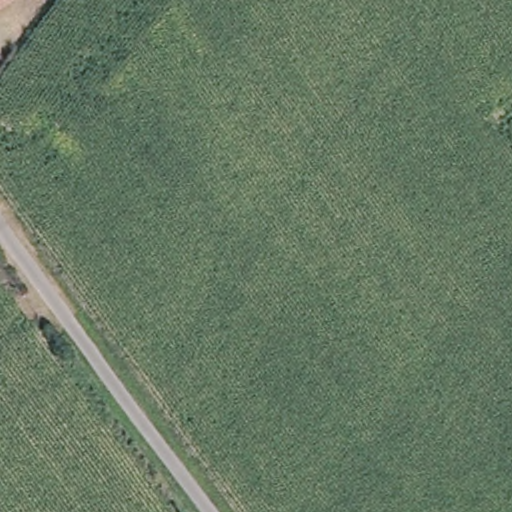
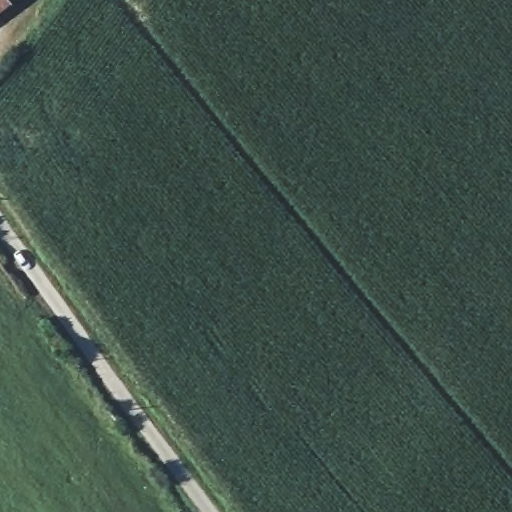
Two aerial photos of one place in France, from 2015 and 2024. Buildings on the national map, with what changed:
unchanged [(0,12),(0,0),(19,0),(0,12)]

